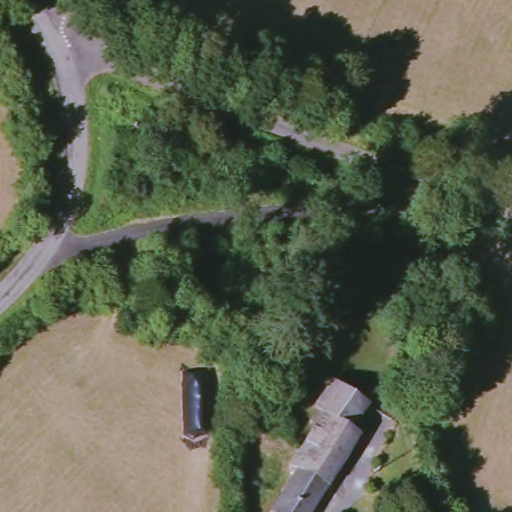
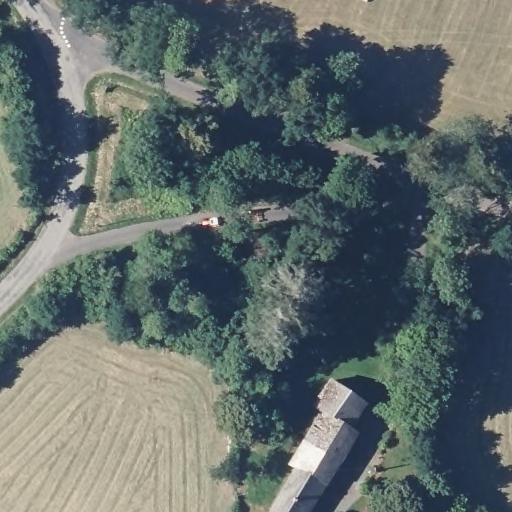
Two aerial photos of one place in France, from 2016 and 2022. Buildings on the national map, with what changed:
unchanged [(304,465),(300,462),(310,444),(329,412),(320,407),(335,382),(369,402),(356,427),(361,433),(312,512),(275,512),(304,465)]

